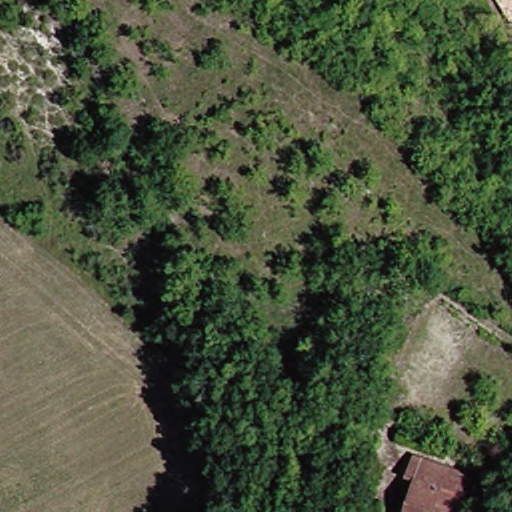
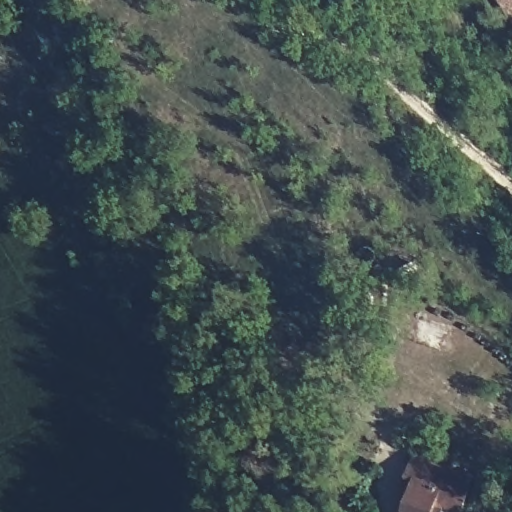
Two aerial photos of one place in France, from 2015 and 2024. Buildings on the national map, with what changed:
unchanged [(512,0),(512,26),(495,0),(512,0)]
unchanged [(409,500),(400,497),(404,482),(412,457),(421,461),(475,481),(469,497),(464,510),(463,512),(404,512),(409,500)]

